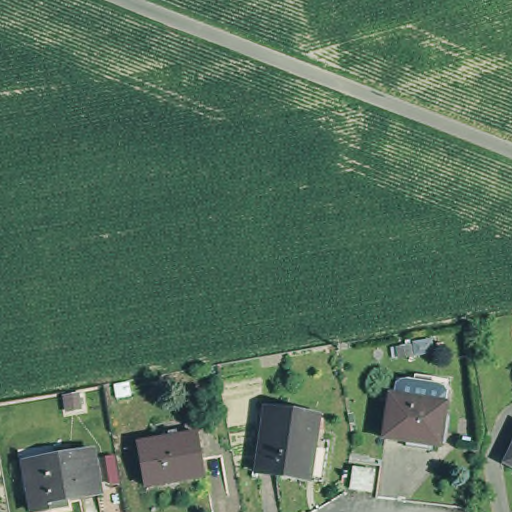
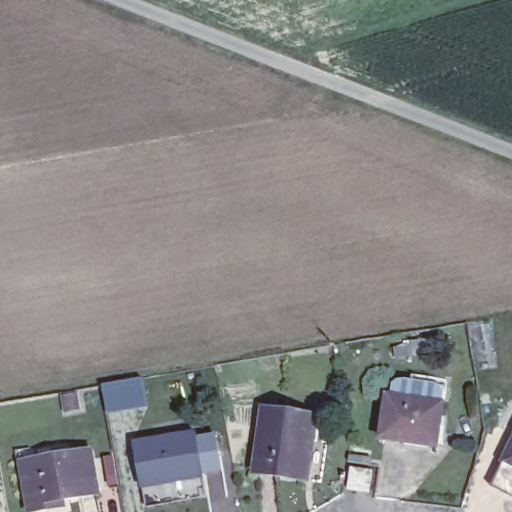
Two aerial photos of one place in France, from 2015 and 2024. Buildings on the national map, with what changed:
unchanged [(385,439),(392,396),(397,397),(400,379),(451,388),(448,407),(441,449),(385,439)]
unchanged [(262,408),(311,419),(306,442),(304,442),(295,481),(248,471),(262,408)]
unchanged [(135,445),(195,436),(201,479),(140,489),(135,445)]
unchanged [(105,497),(57,505),(57,512),(35,512),(33,492),(27,493),(21,453),(56,448),(57,459),(100,452),(105,497)]
unchanged [(512,458),(512,464),(510,463),(512,458)]
unchanged [(369,493),(350,490),(353,469),(373,472),(369,493)]

